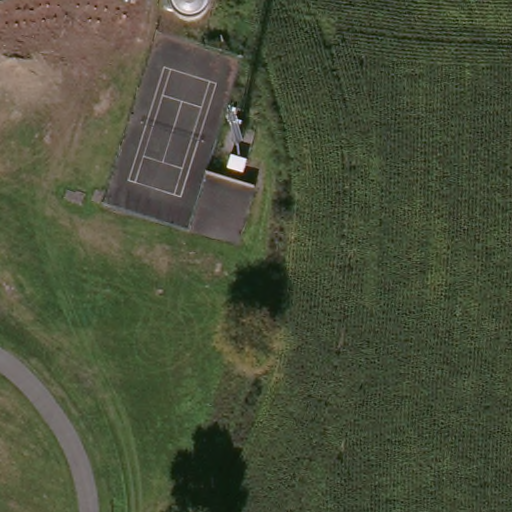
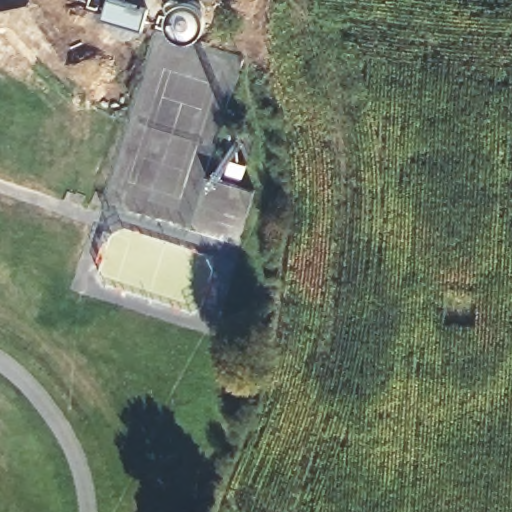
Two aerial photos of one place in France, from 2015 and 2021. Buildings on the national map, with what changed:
[]

